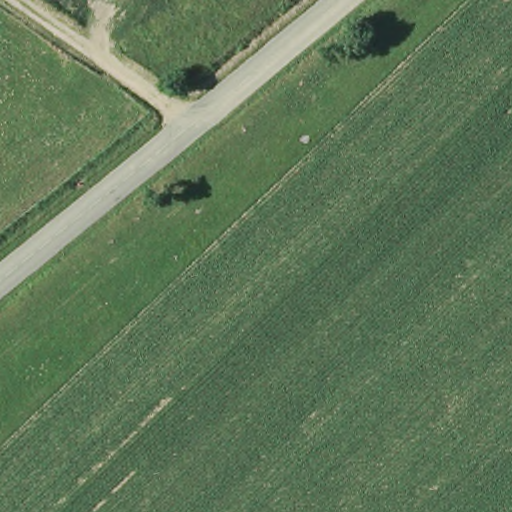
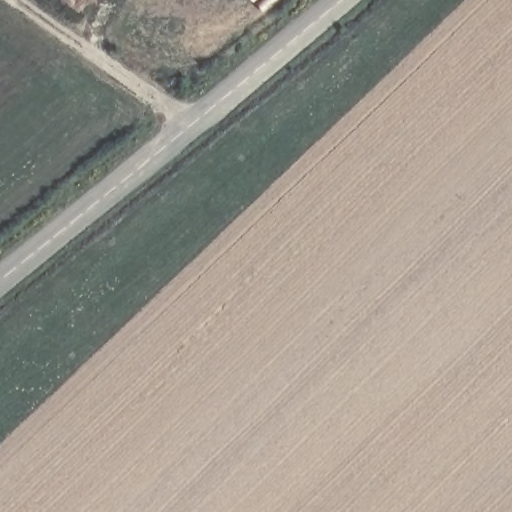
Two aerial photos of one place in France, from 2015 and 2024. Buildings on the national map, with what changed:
[]

